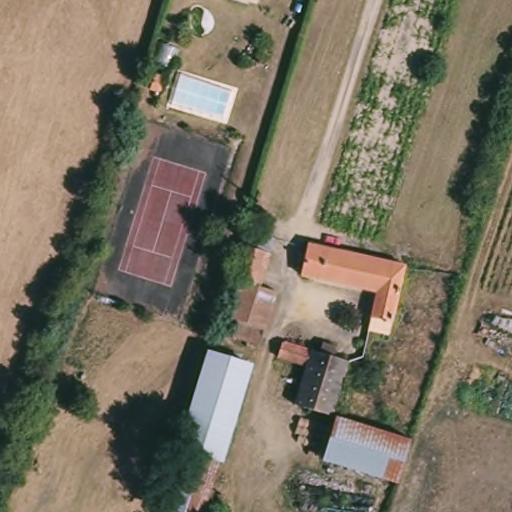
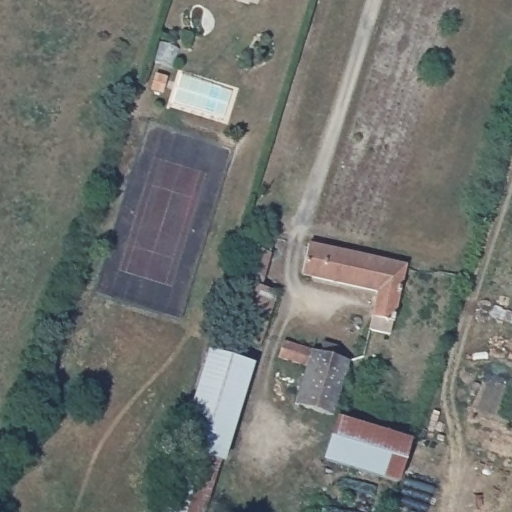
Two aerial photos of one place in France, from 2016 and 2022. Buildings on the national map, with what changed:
unchanged [(249,0),(249,3),(242,0),(249,0)]
unchanged [(270,240),(255,289),(272,294),(255,347),(228,339),(234,322),(225,320),(235,284),(227,281),(242,231),(270,240)]
unchanged [(388,322),(368,319),(373,295),(298,276),(305,245),(400,268),(388,322)]
unchanged [(328,418),(291,407),(301,370),(274,360),(280,344),(345,365),(328,418)]
unchanged [(247,367),(217,463),(215,463),(181,452),(175,450),(205,353),(247,367)]
unchanged [(392,483),(320,461),(333,420),(405,441),(392,483)]
unchanged [(215,463),(199,512),(163,512),(181,452),(215,463)]

